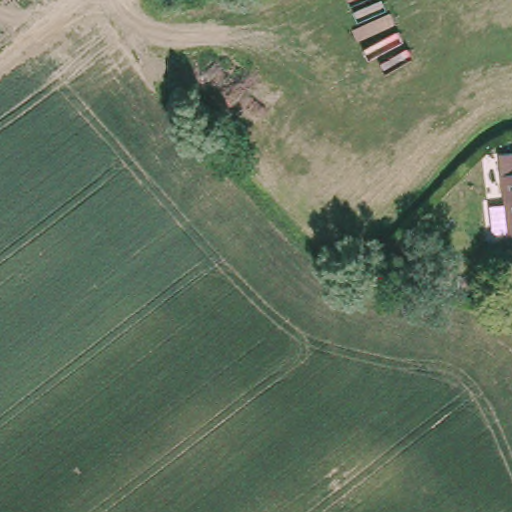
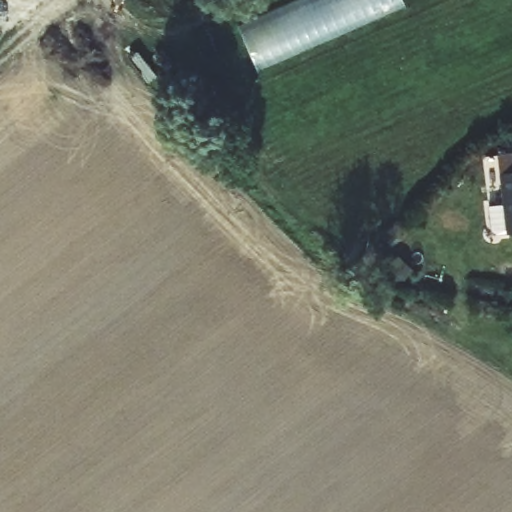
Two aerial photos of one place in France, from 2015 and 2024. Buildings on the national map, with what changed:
new [(258,71),(238,25),(296,0),(402,0),(405,6),(258,71)]
unchanged [(512,234),(504,155),(512,154),(512,234)]

